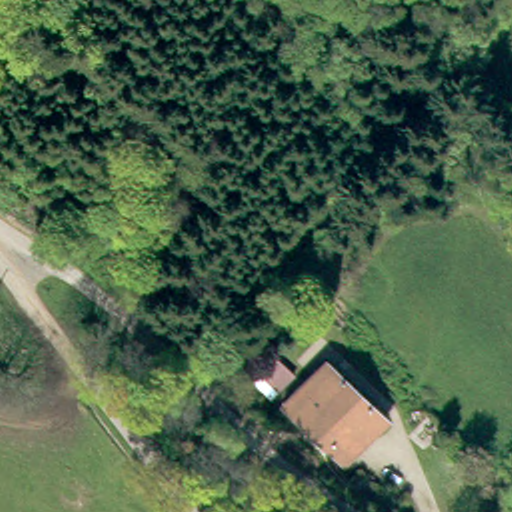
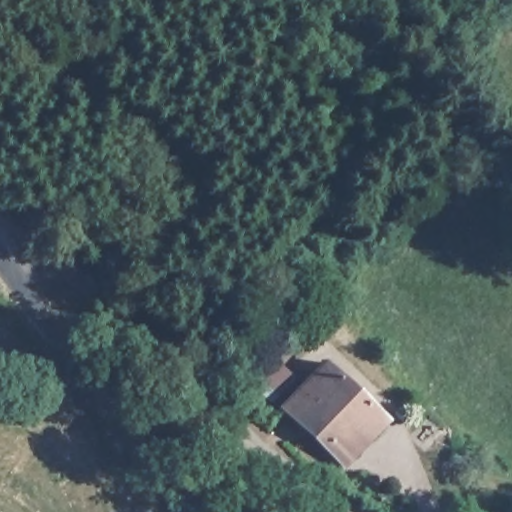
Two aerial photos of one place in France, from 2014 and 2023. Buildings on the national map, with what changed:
unchanged [(279,407),(284,401),(324,357),(387,411),(345,460),(279,407)]

